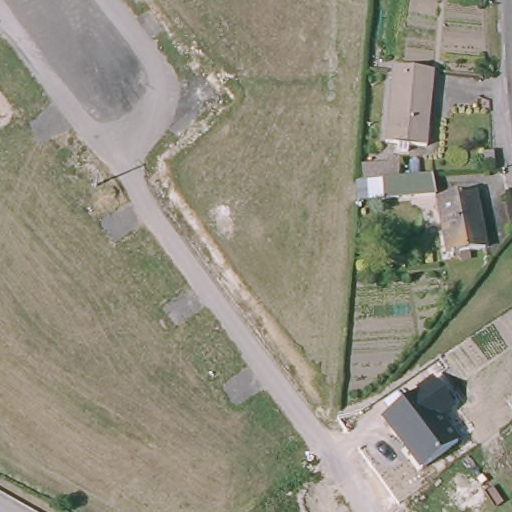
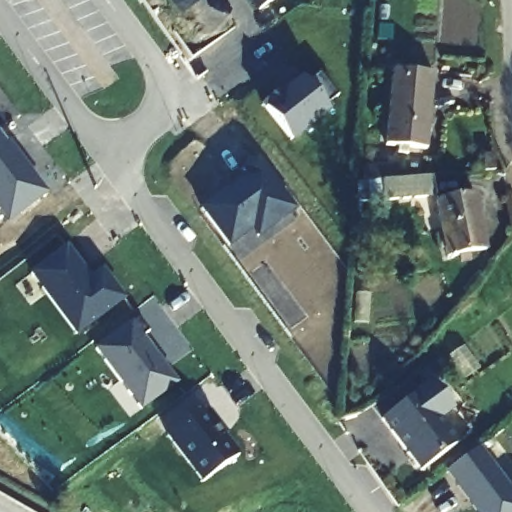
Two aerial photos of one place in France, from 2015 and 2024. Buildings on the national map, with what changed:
new [(256,13),(248,0),(273,0),(256,13)]
unchanged [(432,73),(426,149),(408,148),(408,154),(397,153),(398,146),(386,146),(392,70),(432,73)]
new [(308,82),(319,73),(338,96),(326,105),(330,112),(293,144),(261,107),(302,74),(308,82)]
new [(6,226),(0,218),(0,136),(45,197),(6,226)]
unchanged [(483,172),(483,154),(493,154),(494,172),(483,172)]
new [(296,212),(257,241),(251,233),(228,250),(200,211),(244,178),(239,171),(255,160),(296,212)]
unchanged [(434,176),(438,196),(389,199),(387,179),(434,176)]
unchanged [(448,256),(439,203),(479,195),(488,249),(448,256)]
new [(89,276),(101,268),(124,301),(75,337),(29,273),(67,245),(89,276)]
new [(148,333),(143,338),(178,386),(139,412),(93,348),(136,319),(148,333)]
unchanged [(459,441),(419,472),(379,420),(433,379),(454,410),(444,418),(459,441)]
new [(238,458),(199,484),(165,436),(205,408),(238,458)]
new [(474,512),(442,474),(480,448),(512,493),(512,512),(474,512)]

